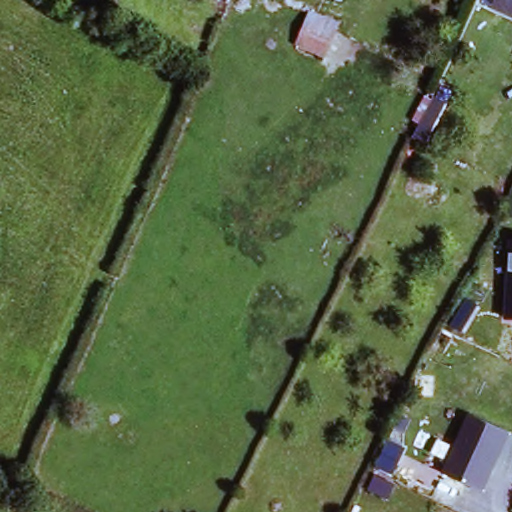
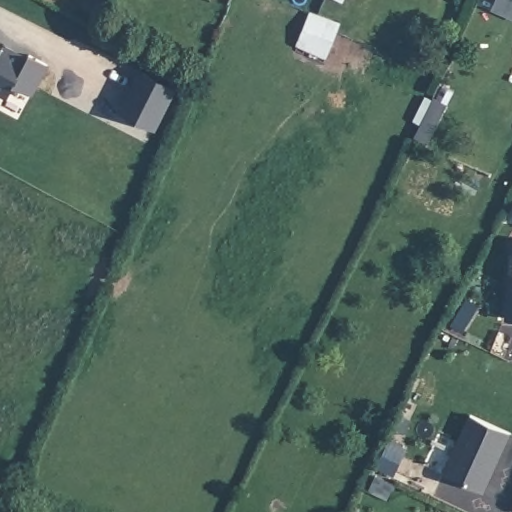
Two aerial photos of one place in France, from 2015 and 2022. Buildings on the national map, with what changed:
unchanged [(473,0),(475,0),(475,1),(473,0)]
unchanged [(494,7),(498,0),(512,0),(512,16),(494,7)]
unchanged [(342,29),(331,51),(298,36),(308,14),(342,29)]
unchanged [(387,32),(394,16),(409,22),(414,15),(442,28),(441,37),(457,45),(447,62),(387,32)]
new [(5,46),(26,59),(28,55),(46,65),(30,93),(14,84),(8,95),(0,91),(0,45),(4,47),(5,46)]
new [(140,72),(173,89),(153,130),(120,112),(140,72)]
unchanged [(506,321),(511,243),(512,243),(512,322),(506,321)]
unchanged [(444,475),(469,416),(511,436),(487,493),(444,475)]

